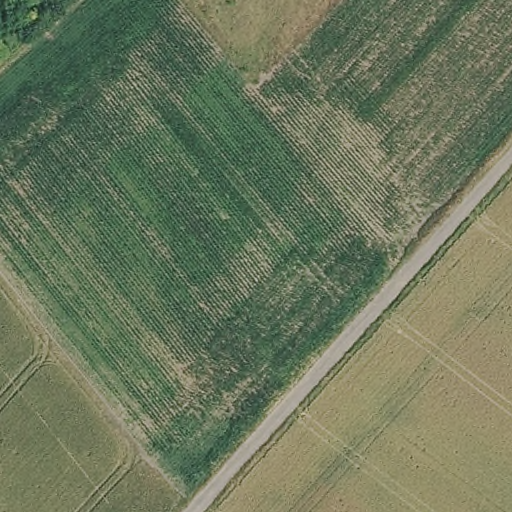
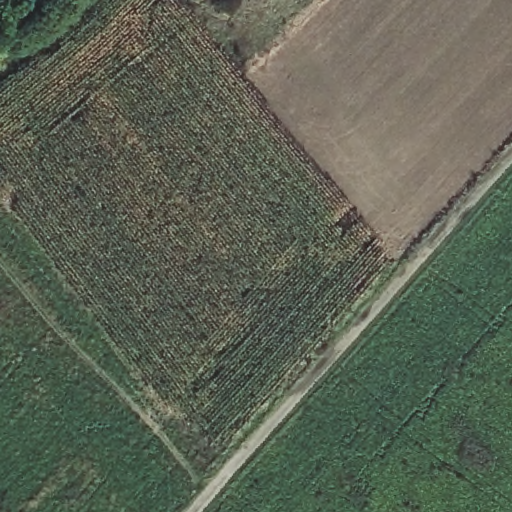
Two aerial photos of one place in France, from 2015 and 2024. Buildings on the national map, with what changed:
[]

